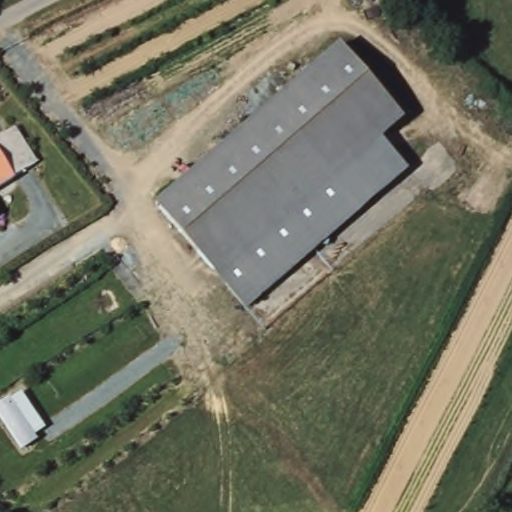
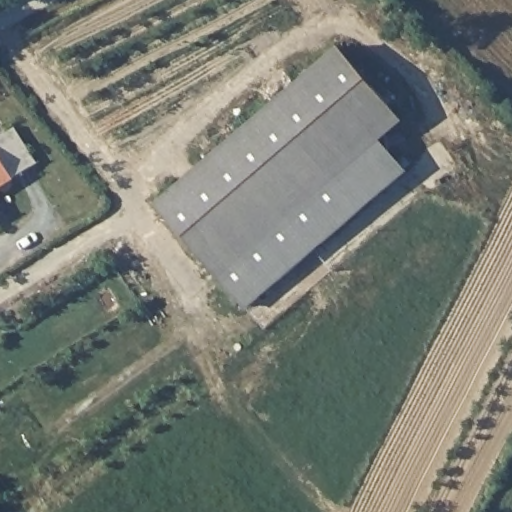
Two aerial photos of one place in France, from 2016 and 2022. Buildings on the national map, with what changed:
unchanged [(338,44),(401,118),(378,137),(315,65),(338,44)]
unchanged [(378,137),(218,274),(155,203),(315,65),(378,137)]
unchanged [(34,165),(10,180),(11,180),(0,187),(0,140),(14,132),(34,165)]
unchanged [(406,166),(245,303),(218,274),(378,137),(406,166)]
new [(0,403),(9,397),(10,400),(19,392),(44,428),(33,435),(37,440),(21,451),(0,419),(0,403)]

